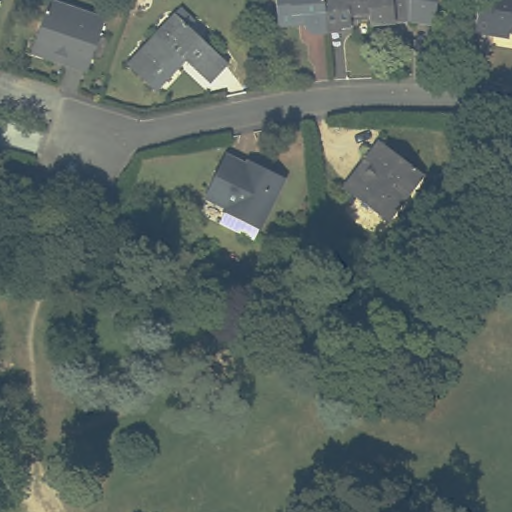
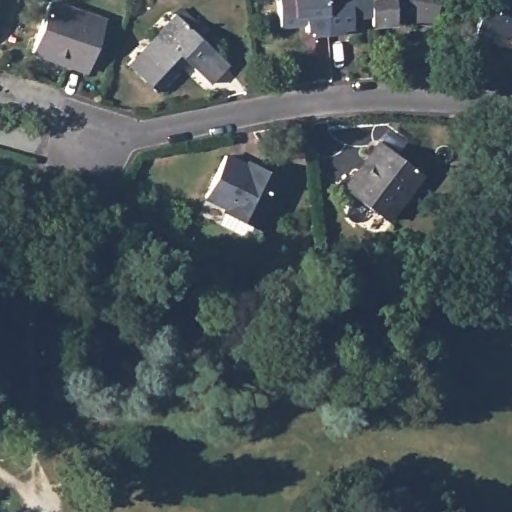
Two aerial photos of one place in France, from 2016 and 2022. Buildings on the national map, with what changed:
unchanged [(281,21),(279,0),(327,0),(330,24),(307,26),(306,19),(281,21)]
unchanged [(355,22),(330,24),(327,0),(374,0),(375,9),(353,11),(355,22)]
unchanged [(374,0),(410,0),(412,17),(375,22),(375,9),(374,0)]
unchanged [(486,0),(512,0),(512,37),(482,32),(486,0)]
unchanged [(35,55),(52,4),(107,22),(90,73),(35,55)]
unchanged [(130,65),(179,16),(231,67),(212,86),(189,62),(159,94),(130,65)]
unchanged [(341,188),(376,142),(421,175),(386,222),(341,188)]
unchanged [(227,235),(233,223),(221,217),(224,214),(201,202),(222,160),(244,171),(246,166),(281,184),(257,235),(254,234),(249,245),(227,235)]

